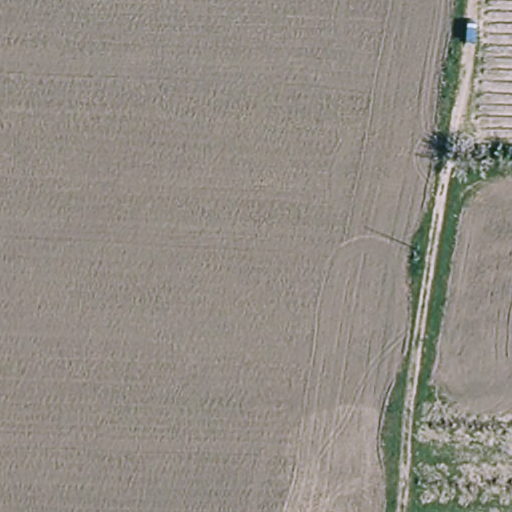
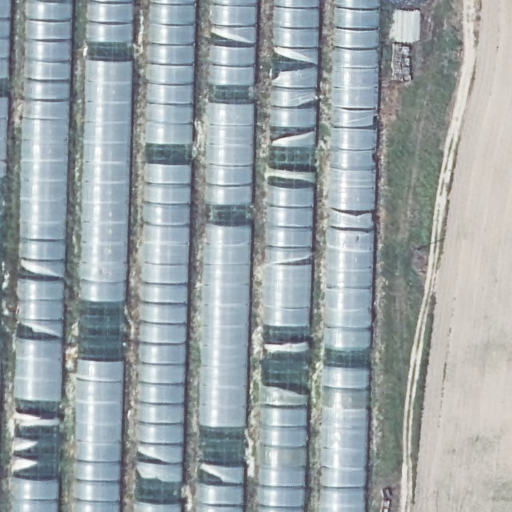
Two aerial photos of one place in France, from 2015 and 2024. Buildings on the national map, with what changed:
new [(0,285),(0,0),(9,0),(0,285)]
new [(56,512),(12,512),(26,0),(70,0),(56,512)]
new [(118,512),(73,512),(88,0),(132,0),(118,512)]
new [(180,512),(134,512),(149,0),(194,0),(180,512)]
new [(240,512),(198,512),(212,0),(255,0),(240,512)]
new [(303,512),(259,512),(272,0),(318,0),(303,512)]
new [(363,512),(320,512),(334,0),(379,0),(363,512)]
demolished [(363,260),(364,284),(333,286),(331,261),(363,260)]

